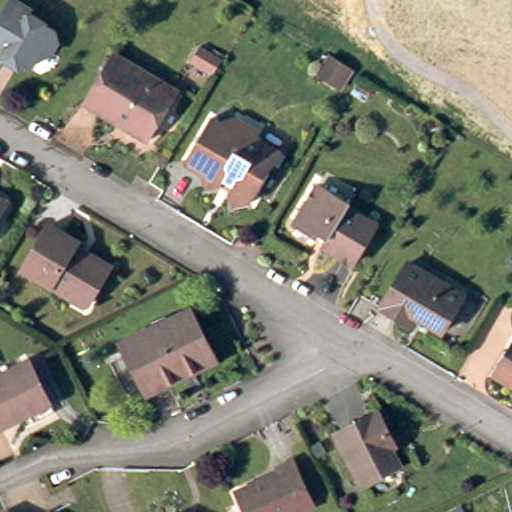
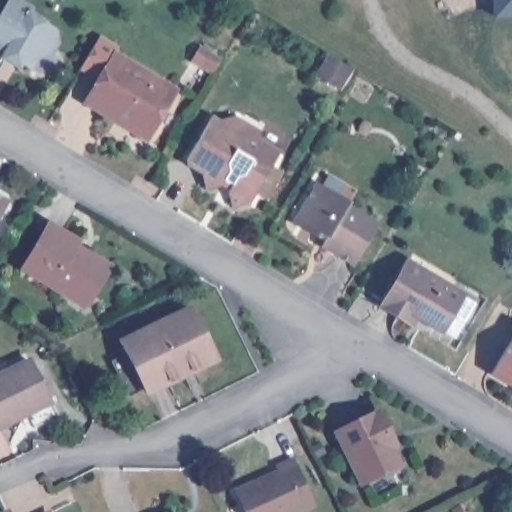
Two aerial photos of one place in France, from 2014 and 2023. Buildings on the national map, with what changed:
unchanged [(0,60),(0,7),(4,0),(9,0),(26,10),(24,14),(41,24),(40,25),(48,30),(51,42),(46,51),(31,55),(25,67),(15,61),(12,67),(0,60)]
new [(491,0),(512,0),(512,19),(492,20),(491,0)]
unchanged [(185,61),(193,46),(196,49),(220,62),(211,77),(188,64),(185,61)]
unchanged [(175,86),(146,135),(83,99),(112,50),(175,86)]
unchanged [(330,58),(351,71),(351,72),(340,89),(319,75),(330,58)]
unchanged [(273,155),(245,204),(226,210),(220,193),(223,189),(216,184),(214,187),(198,193),(196,175),(182,166),(180,160),(205,120),(212,125),(230,120),(253,134),(250,140),(273,155)]
unchanged [(289,221),(311,184),(343,203),(341,206),(370,223),(346,262),(317,244),(320,240),(312,235),(289,221)]
unchanged [(3,198),(0,202),(0,203),(0,196),(3,198)]
unchanged [(68,292),(21,265),(47,221),(77,238),(75,242),(88,250),(110,262),(90,296),(90,295),(85,302),(68,292)]
unchanged [(397,312),(380,301),(407,256),(450,283),(463,290),(441,327),(415,311),(410,320),(397,312)]
unchanged [(111,344),(120,340),(190,305),(216,358),(147,392),(139,396),(111,344)]
unchanged [(512,339),(512,387),(490,375),(512,339)]
unchanged [(15,416),(0,423),(0,371),(25,359),(43,396),(45,401),(15,416)]
unchanged [(390,443),(385,446),(394,464),(357,483),(331,431),(373,410),(385,433),(390,443)]
unchanged [(292,512),(242,512),(232,493),(275,471),(272,467),(287,459),(310,502),(292,512)]

